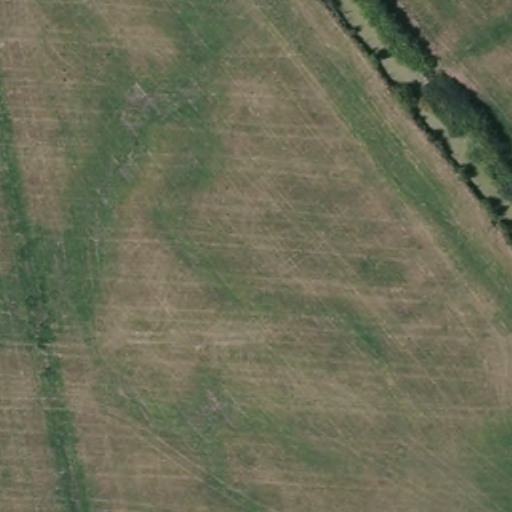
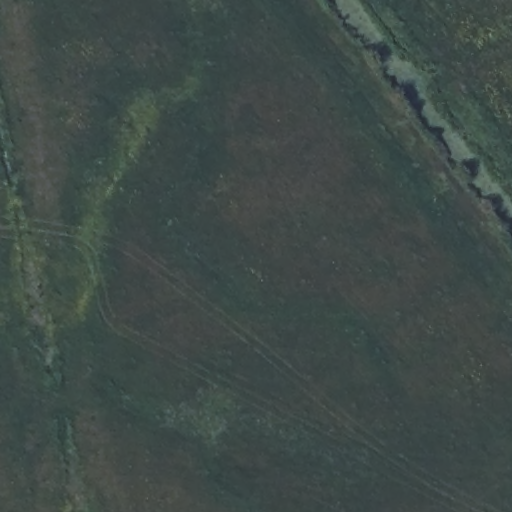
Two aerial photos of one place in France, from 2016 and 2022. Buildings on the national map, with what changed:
[]

